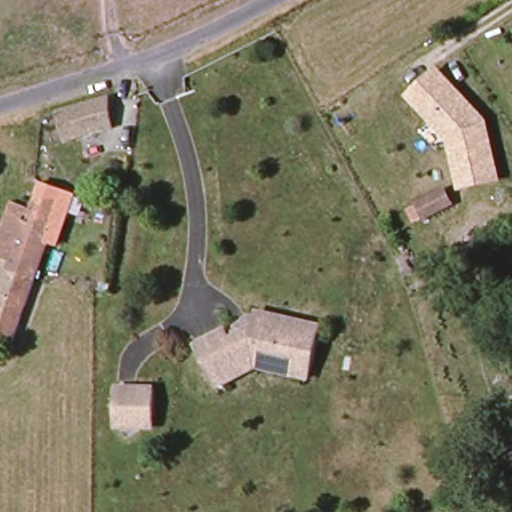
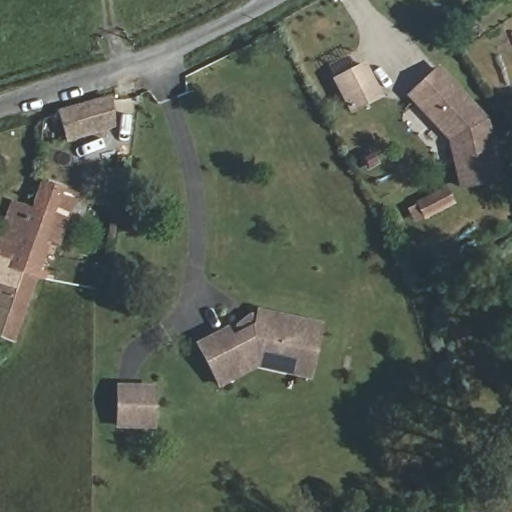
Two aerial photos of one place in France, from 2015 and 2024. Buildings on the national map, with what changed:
new [(330,80),(364,61),(383,96),(350,115),(330,80)]
unchanged [(458,189),(447,141),(405,97),(438,66),(487,118),(500,180),(458,189)]
unchanged [(105,100),(115,128),(70,143),(61,115),(105,100)]
unchanged [(446,188),(455,205),(415,229),(406,211),(446,188)]
unchanged [(12,202),(33,209),(36,201),(63,210),(13,345),(0,340),(0,237),(5,222),(12,202)]
unchanged [(219,385),(195,346),(221,330),(227,339),(236,334),(234,325),(245,315),(252,316),(254,309),(296,316),(316,319),(315,323),(307,371),(288,368),(255,363),(245,369),(219,385)]
unchanged [(153,392),(155,431),(120,433),(118,394),(153,392)]

